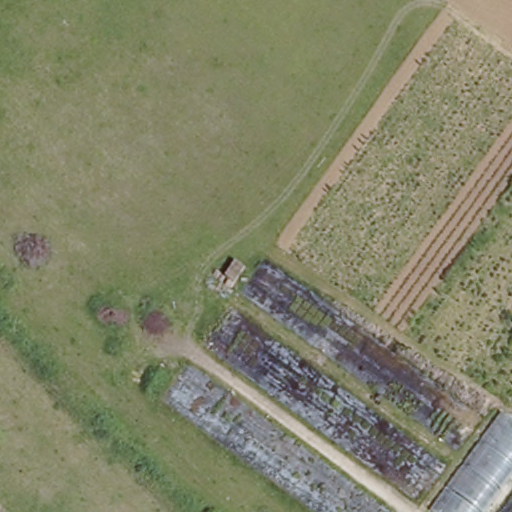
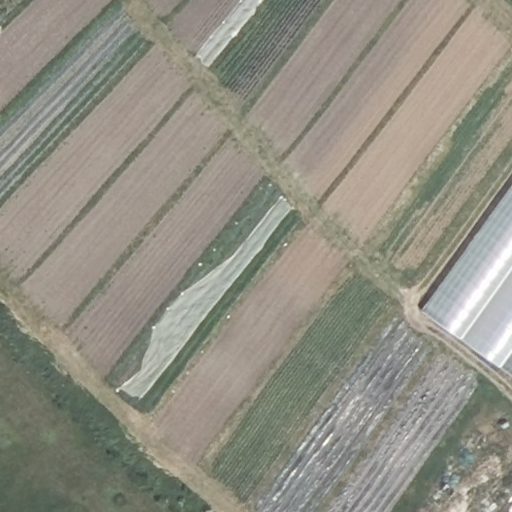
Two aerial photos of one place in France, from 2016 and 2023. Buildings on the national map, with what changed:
new [(512,189),(512,376),(424,312),(512,189)]
demolished [(512,428),(512,474),(484,512),(435,512),(431,509),(496,417),(512,428)]

